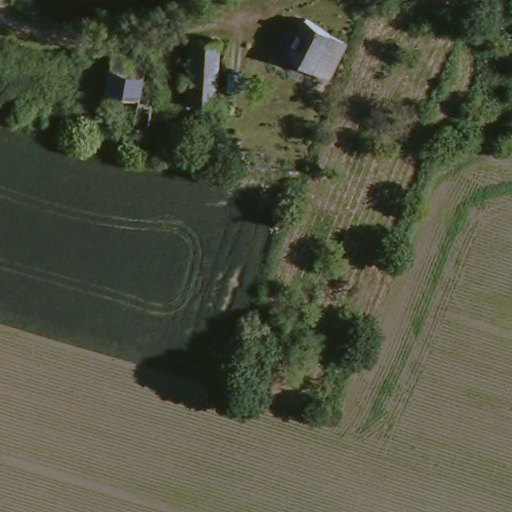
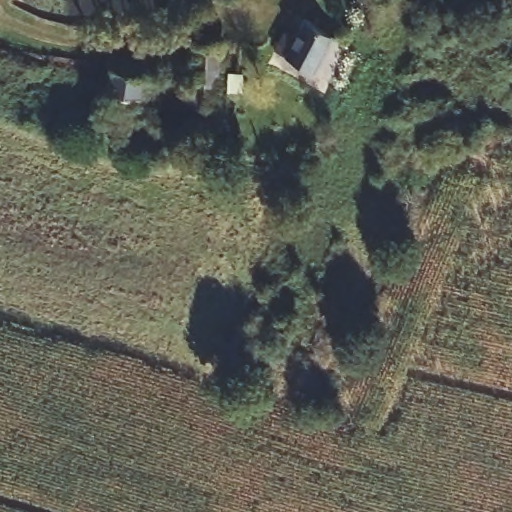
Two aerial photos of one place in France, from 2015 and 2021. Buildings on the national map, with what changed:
unchanged [(352,41),(336,80),(292,57),(291,55),(283,51),(292,31),(302,35),(310,21),(352,41)]
unchanged [(223,77),(219,100),(190,96),(199,36),(227,41),(223,77)]
unchanged [(111,62),(114,52),(117,54),(120,40),(156,47),(154,65),(149,95),(142,95),(135,129),(99,122),(111,62)]
unchanged [(232,79),(235,67),(247,69),(245,82),(243,87),(231,85),(232,79)]

